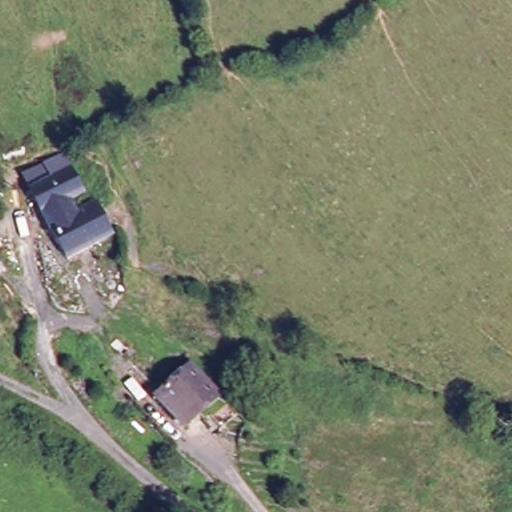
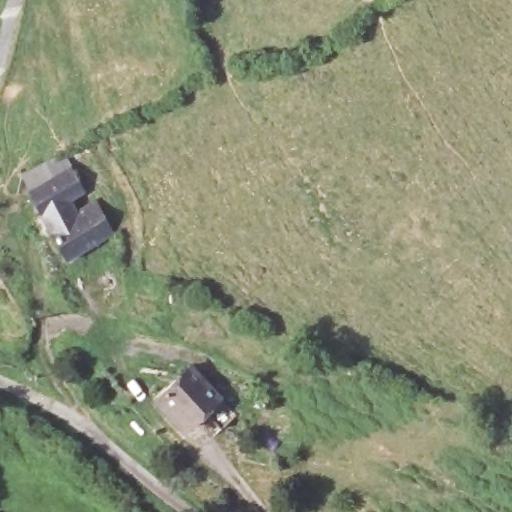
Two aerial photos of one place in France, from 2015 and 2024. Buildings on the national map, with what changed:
unchanged [(75,252),(36,187),(80,160),(95,185),(81,194),(89,204),(104,195),(109,193),(122,219),(75,252)]
unchanged [(214,430),(196,412),(190,418),(177,431),(150,398),(165,384),(186,364),(211,396),(227,417),(214,430)]

